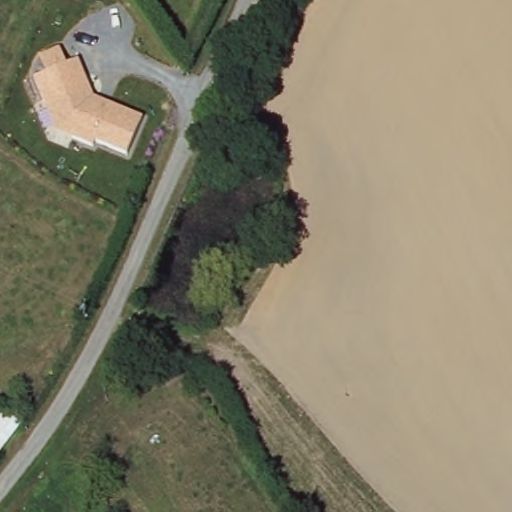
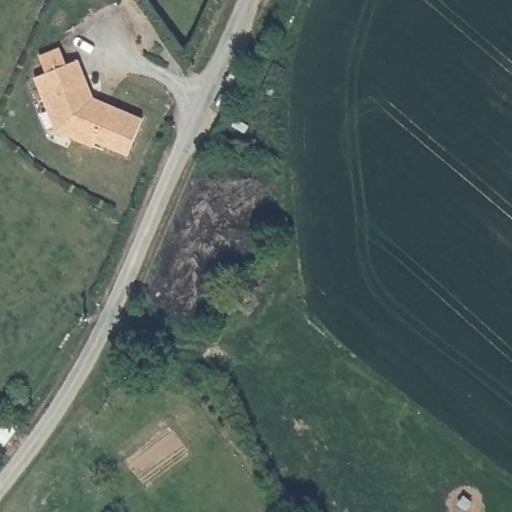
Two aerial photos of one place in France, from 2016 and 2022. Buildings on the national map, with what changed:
unchanged [(34,78),(45,74),(39,56),(61,49),(66,66),(79,61),(95,99),(143,119),(127,156),(95,142),(92,148),(55,133),(34,78)]

